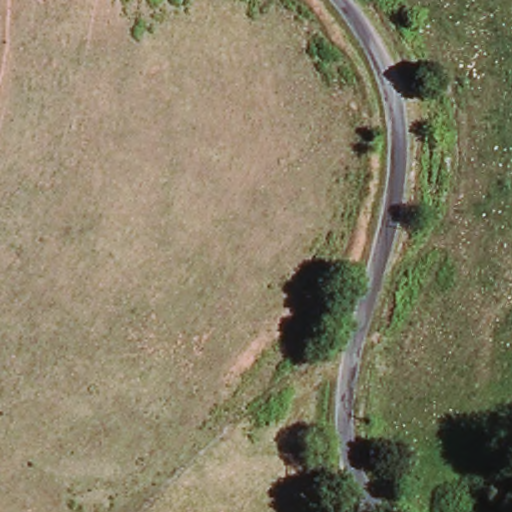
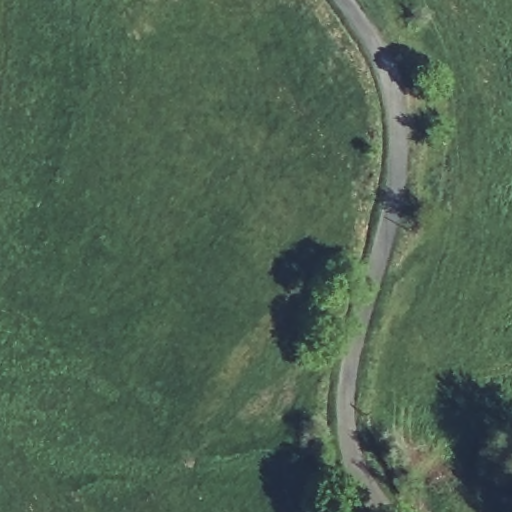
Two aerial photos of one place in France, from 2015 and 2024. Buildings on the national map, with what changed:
[]

